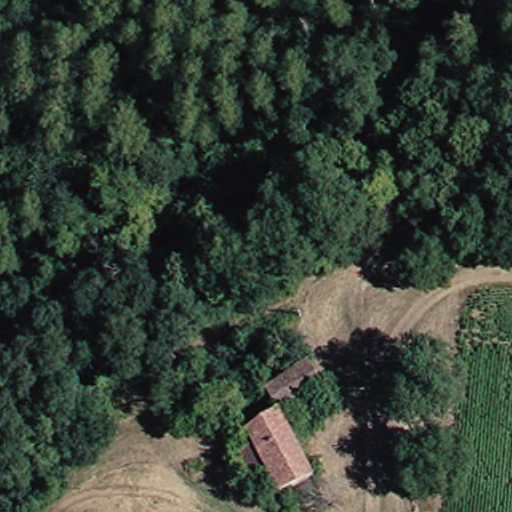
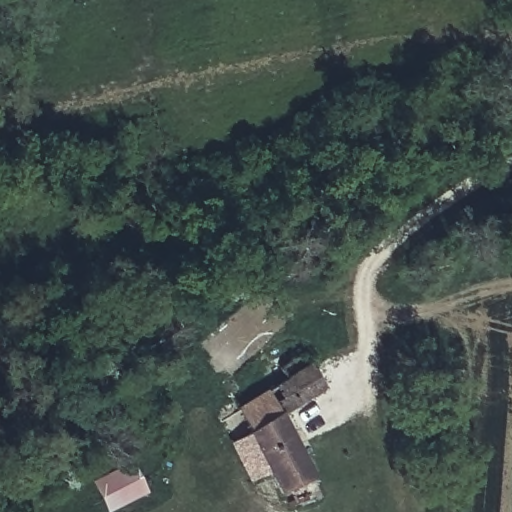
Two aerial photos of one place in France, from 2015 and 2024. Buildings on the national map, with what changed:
unchanged [(296,511),(294,512),(273,512),(265,499),(277,493),(269,477),(251,487),(235,459),(254,449),(234,412),(284,382),(277,369),(303,355),(311,369),(323,388),(304,400),(277,416),(310,476),(322,497),(296,511)]
new [(132,462),(148,494),(112,512),(109,512),(93,482),(132,462)]

